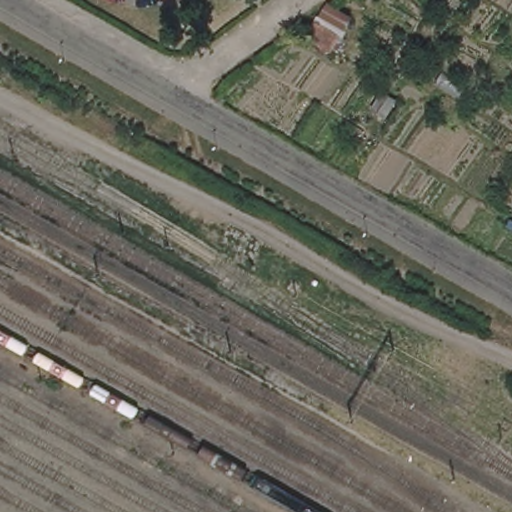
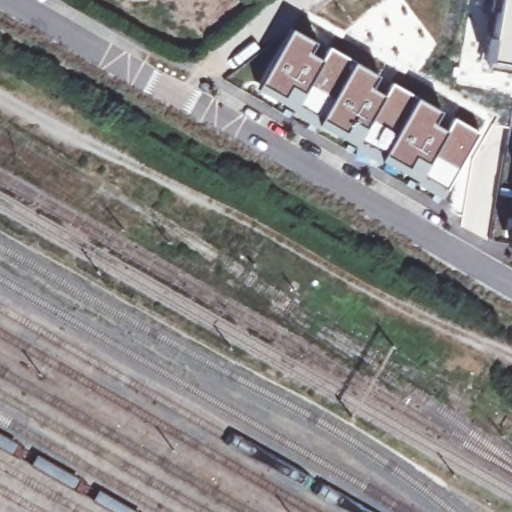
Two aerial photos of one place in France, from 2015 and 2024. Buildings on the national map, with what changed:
demolished [(332,0),(365,18),(348,57),(314,40),(332,0)]
new [(484,37),(488,38),(494,0),(512,0),(512,67),(479,57),(484,37)]
new [(292,27),(316,41),(310,51),(322,59),(329,46),(355,60),(377,75),(371,86),(385,94),(392,82),(417,95),(442,110),(436,123),(445,129),(455,115),(480,130),(443,196),(416,180),(258,87),(292,27)]
new [(487,239),(512,112),(512,243),(487,239)]

